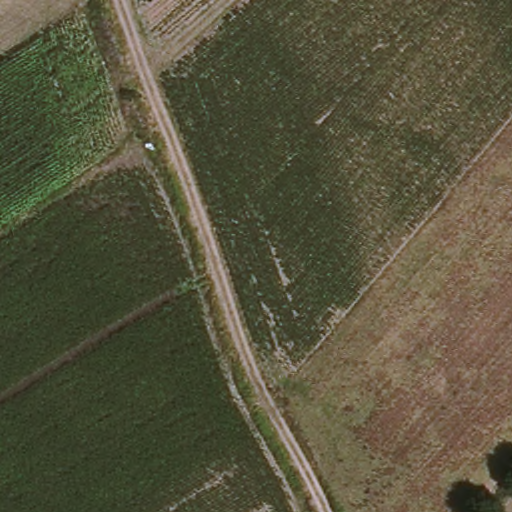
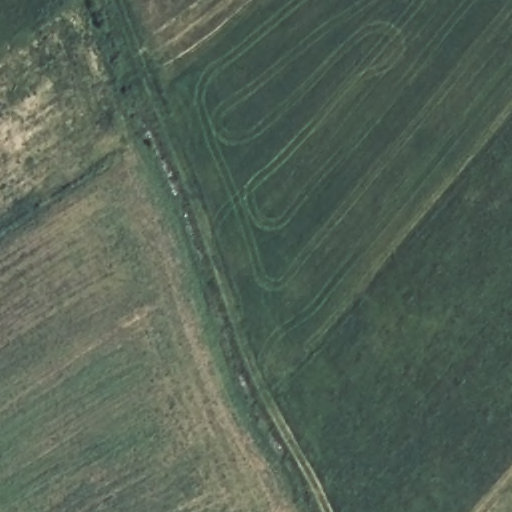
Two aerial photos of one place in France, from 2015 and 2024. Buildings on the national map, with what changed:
[]

